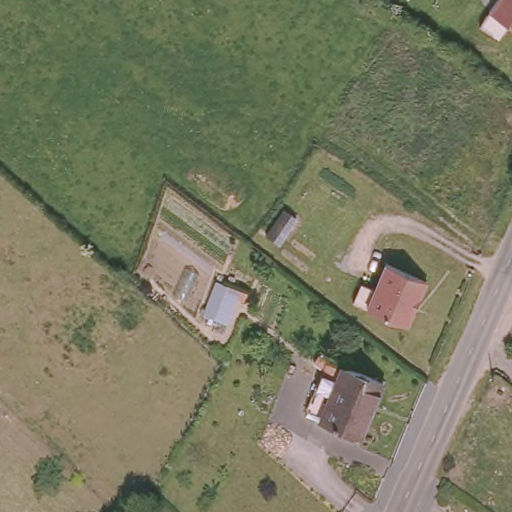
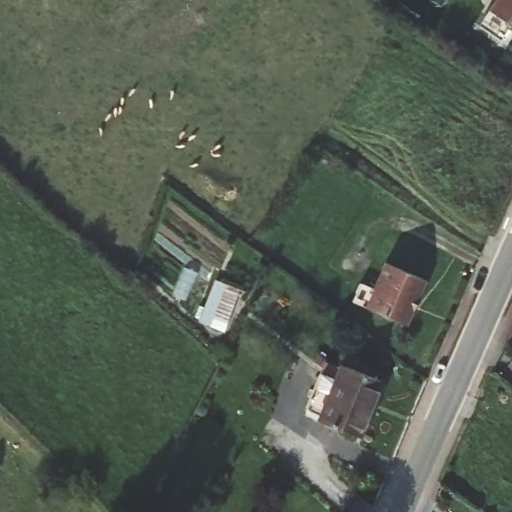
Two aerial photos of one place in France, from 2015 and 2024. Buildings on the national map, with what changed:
unchanged [(497,0),(512,0),(512,31),(507,28),(495,44),(477,31),(487,14),(497,0)]
unchanged [(387,329),(353,314),(339,309),(347,289),(361,295),(372,269),(412,287),(405,304),(392,332),(387,329)]
unchanged [(327,409),(315,404),(326,377),(334,360),(345,365),(385,382),(362,437),(323,420),(327,409)]

